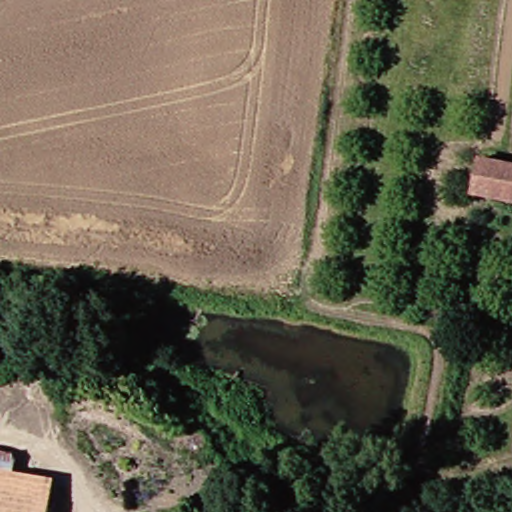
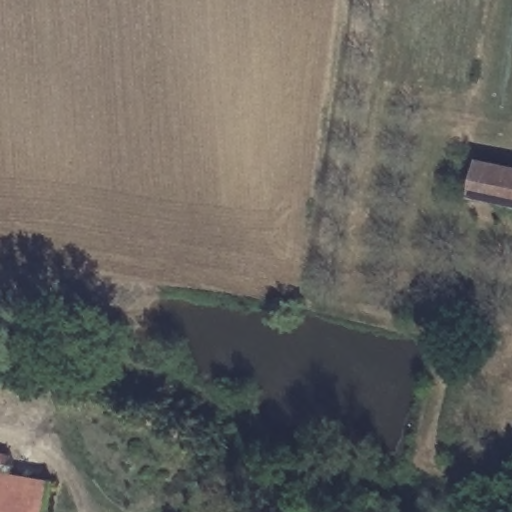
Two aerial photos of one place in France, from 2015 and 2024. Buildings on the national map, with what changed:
unchanged [(482,195),(487,160),(512,164),(512,199),(482,195)]
unchanged [(0,455),(20,460),(15,477),(55,486),(50,512),(0,512),(0,473),(0,455)]

